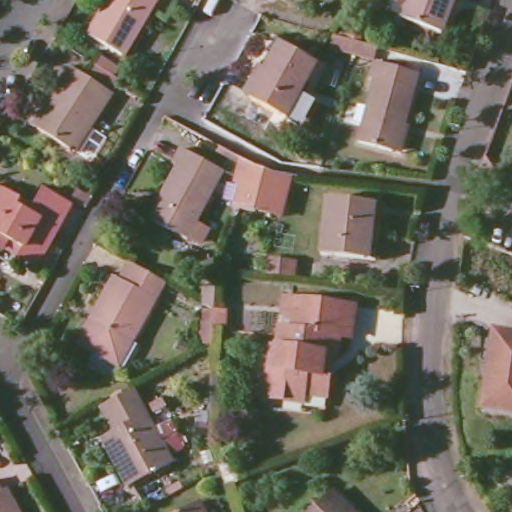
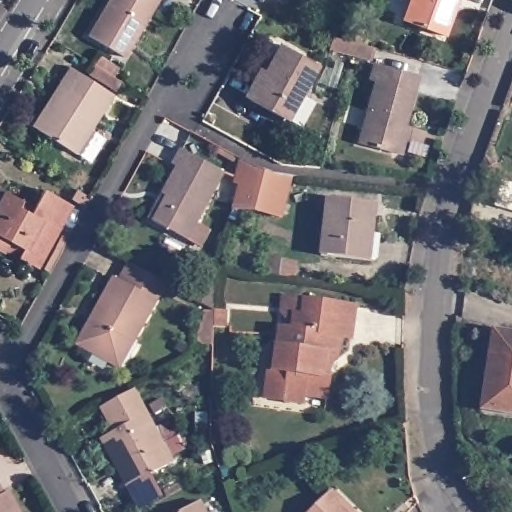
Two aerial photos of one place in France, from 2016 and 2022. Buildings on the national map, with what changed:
unchanged [(91,37),(107,9),(112,0),(157,0),(125,56),(91,37)]
unchanged [(410,0),(453,0),(437,43),(400,29),(410,0)]
unchanged [(367,59),(347,54),(326,48),(329,36),(351,41),(371,48),(367,59)]
unchanged [(252,99),(281,46),(316,65),(287,119),(252,99)]
unchanged [(90,73),(96,63),(101,54),(117,64),(112,74),(120,79),(114,89),(90,73)]
unchanged [(397,155),(390,153),(356,144),(372,81),(367,80),(372,64),(414,76),(401,126),(405,128),(397,155)]
unchanged [(49,106),(72,69),(111,94),(76,153),(40,130),(36,128),(49,106)]
unchanged [(300,178),(296,220),(271,214),(270,216),(255,212),(240,210),(234,210),(242,189),(238,187),(242,167),(217,154),(221,149),(244,161),(257,168),(266,172),(275,175),(300,178)]
unchanged [(164,195),(179,169),(174,166),(182,152),(222,174),(187,239),(155,222),(151,219),(164,195)]
unchanged [(485,156),(499,164),(501,179),(481,173),(485,156)]
unchanged [(82,198),(77,206),(63,197),(67,189),(82,198)]
unchanged [(27,209),(37,192),(60,204),(27,267),(11,258),(0,252),(0,195),(12,201),(27,209)]
unchanged [(364,259),(323,255),(328,200),(374,205),(372,234),(370,259),(364,259)]
unchanged [(41,273),(34,269),(53,234),(60,238),(41,273)]
unchanged [(265,268),(267,253),(297,256),(295,272),(265,268)]
unchanged [(112,365),(92,354),(79,348),(81,344),(116,279),(120,281),(130,264),(162,283),(166,284),(156,302),(134,345),(121,369),(112,365)]
unchanged [(267,391),(274,344),(280,344),(282,328),(292,329),(294,319),(289,319),(283,310),(286,297),(355,306),(351,337),(340,335),(337,356),(330,363),(328,377),(325,398),(305,396),(304,403),(284,401),(266,398),(267,391)]
unchanged [(229,326),(215,326),(215,347),(197,348),(196,323),(205,324),(205,310),(229,311),(229,326)]
unchanged [(491,373),(497,334),(512,336),(512,414),(492,411),(486,410),(491,373)]
unchanged [(117,434),(102,408),(133,391),(172,463),(130,487),(109,450),(104,440),(117,434)]
unchanged [(0,491),(2,493),(6,492),(17,512),(0,512),(0,491)]
unchanged [(332,494),(350,512),(313,512),(332,494)]
unchanged [(204,512),(184,512),(200,504),(204,512)]

